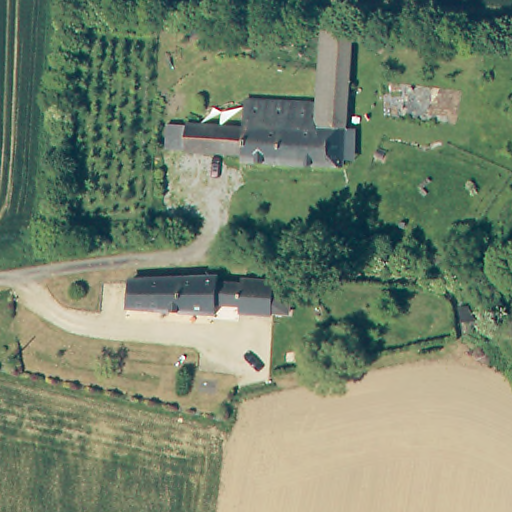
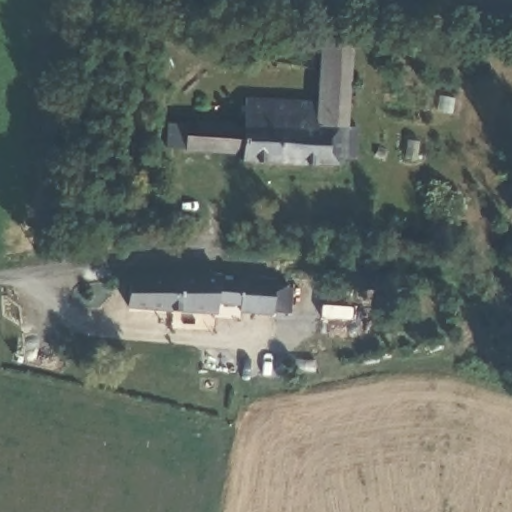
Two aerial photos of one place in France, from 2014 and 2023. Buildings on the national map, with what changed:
unchanged [(313,125),(314,101),(320,30),(347,33),(339,126),(313,125)]
unchanged [(184,113),(237,119),(242,95),(314,101),(313,125),(339,126),(336,166),(234,157),(235,148),(178,143),(184,113)]
unchanged [(283,308),(268,307),(268,310),(236,309),(236,298),(212,298),(212,304),(131,302),(123,301),(124,277),(124,274),(149,272),(172,272),(213,274),(212,279),(237,280),(237,275),(269,276),(269,282),(284,283),(283,308)]

